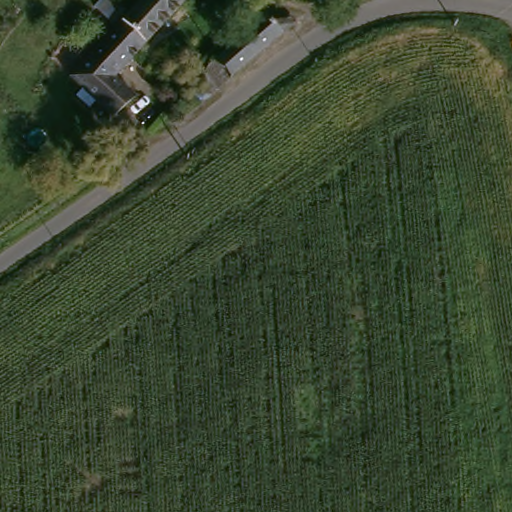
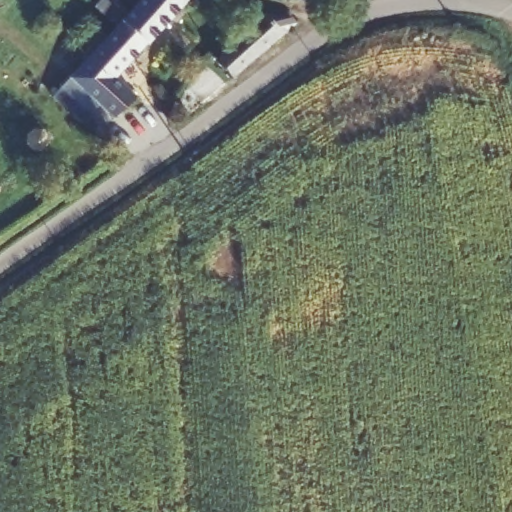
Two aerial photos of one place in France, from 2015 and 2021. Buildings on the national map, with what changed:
unchanged [(189,0),(118,77),(139,99),(118,121),(76,79),(123,30),(119,26),(128,17),(132,21),(152,0),(189,0)]
unchanged [(269,9),(291,28),(214,96),(196,80),(269,9)]

